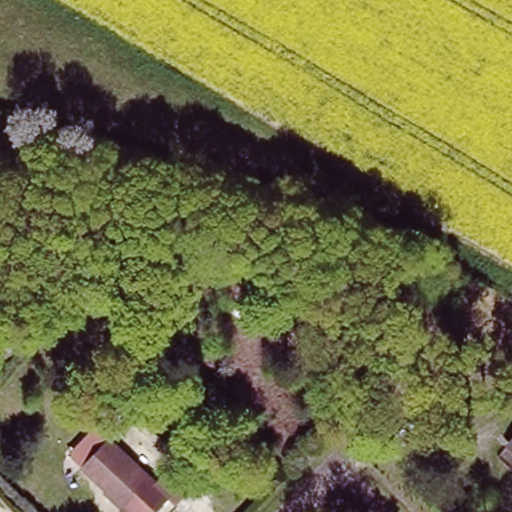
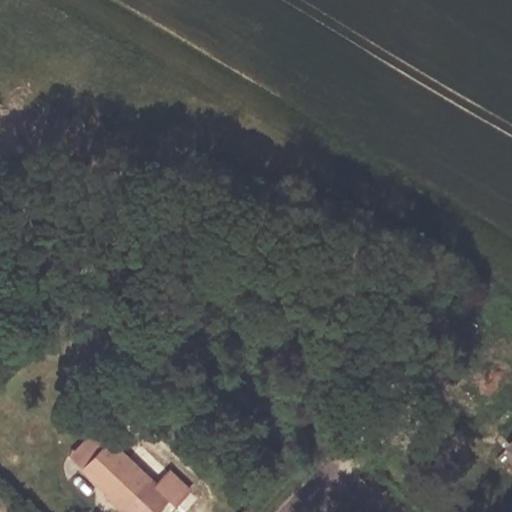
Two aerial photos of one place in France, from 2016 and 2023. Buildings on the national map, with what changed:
unchanged [(111,436),(160,481),(172,467),(193,487),(180,502),(172,494),(156,512),(137,512),(127,503),(85,462),(111,436)]

